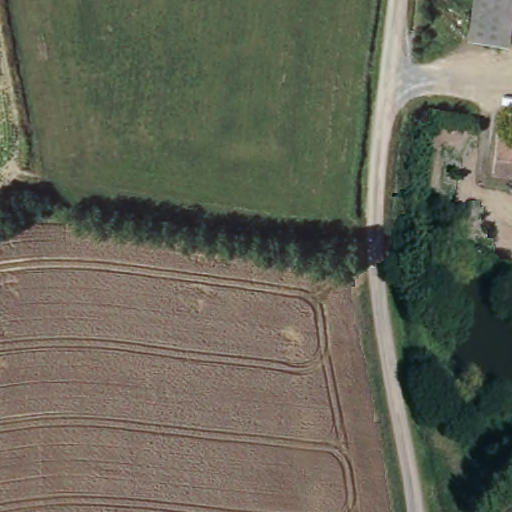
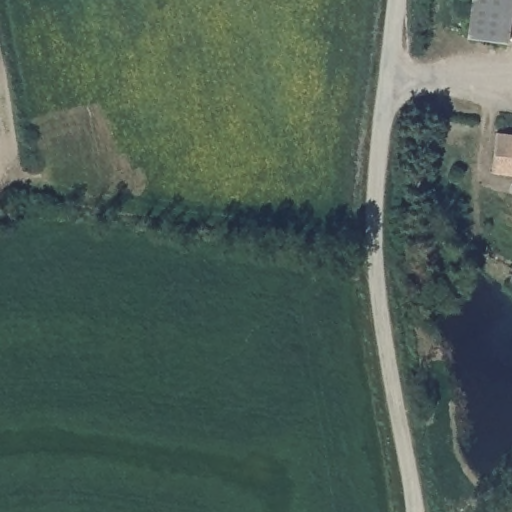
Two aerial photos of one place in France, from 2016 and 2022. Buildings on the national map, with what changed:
unchanged [(475,34),(479,0),(512,0),(512,39),(475,34)]
unchanged [(512,136),(512,177),(495,174),(501,134),(512,136)]

